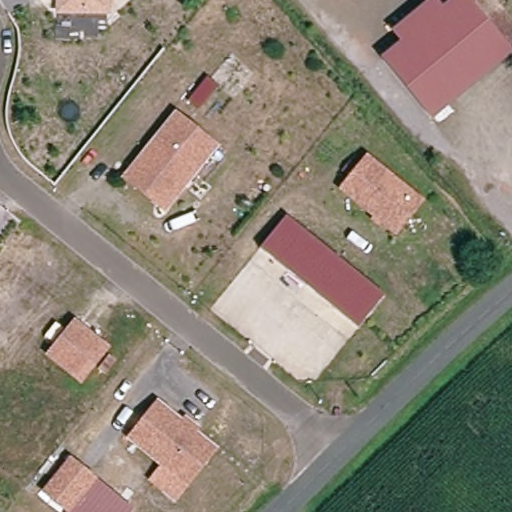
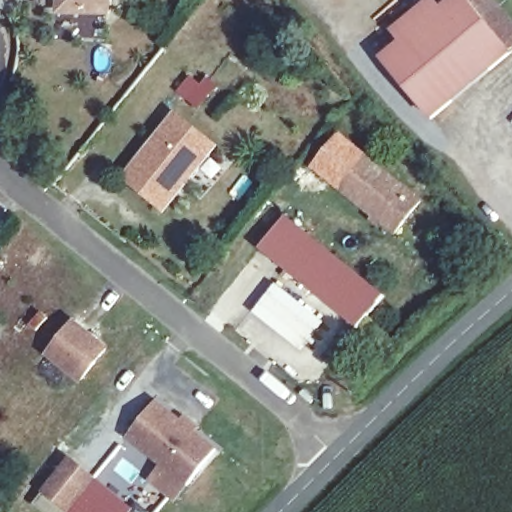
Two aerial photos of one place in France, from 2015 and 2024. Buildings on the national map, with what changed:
unchanged [(60,14),(61,0),(111,0),(109,15),(60,14)]
unchanged [(427,121),(377,62),(398,45),(388,34),(408,17),(417,28),(451,0),(484,0),(512,32),(512,50),(427,121)]
unchanged [(124,176),(174,114),(212,145),(161,207),(124,176)]
new [(343,192),(311,167),(339,132),(369,161),(343,192)]
unchanged [(369,161),(423,204),(397,235),(343,192),(369,161)]
unchanged [(288,214),(386,293),(360,326),(261,247),(288,214)]
unchanged [(82,379),(52,353),(77,322),(108,347),(82,379)]
unchanged [(159,402),(217,447),(190,482),(132,436),(159,402)]
unchanged [(72,460),(95,478),(70,510),(47,491),(72,460)]
unchanged [(132,509),(130,512),(68,512),(70,510),(95,478),(132,509)]

